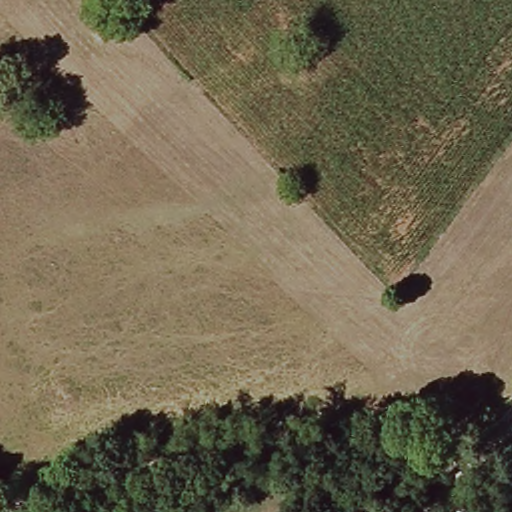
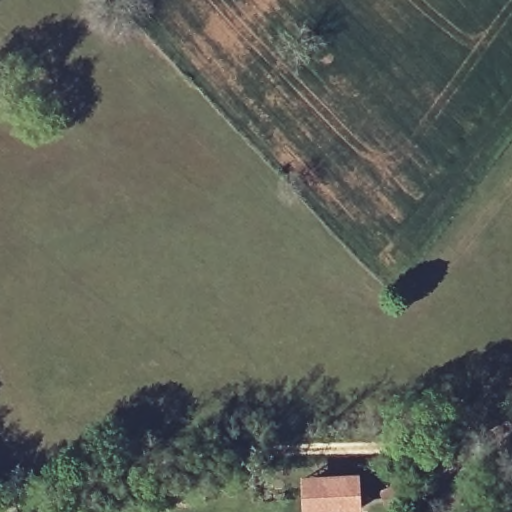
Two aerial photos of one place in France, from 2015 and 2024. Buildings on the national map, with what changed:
new [(358,472),(360,512),(300,512),(298,475),(358,472)]

